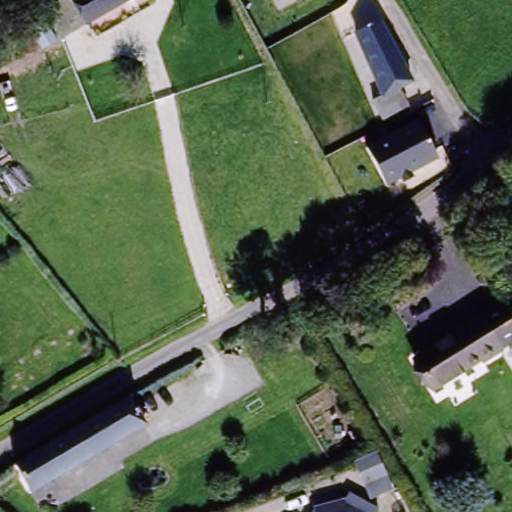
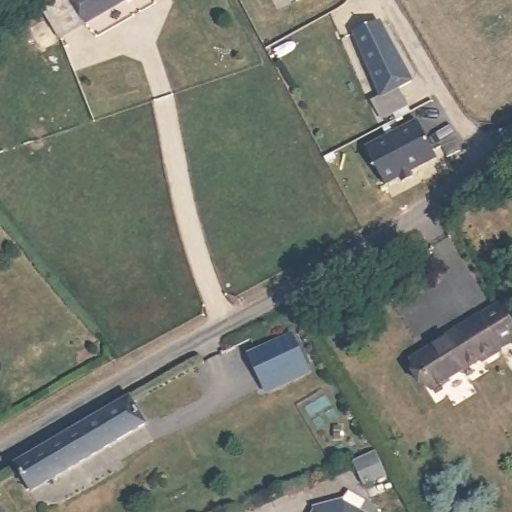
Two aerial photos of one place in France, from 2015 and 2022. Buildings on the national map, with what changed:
unchanged [(45,21),(63,6),(74,0),(132,0),(77,31),(58,42),(45,21)]
unchanged [(296,2),(295,0),(301,0),(296,2)]
unchanged [(360,31),(347,5),(359,0),(361,0),(402,86),(378,97),(352,36),(360,31)]
unchanged [(512,325),(512,346),(496,356),(473,318),(500,304),(512,325)]
unchanged [(407,359),(473,318),(496,356),(478,366),(475,361),(425,390),(407,359)]
new [(267,388),(252,356),(295,336),(310,368),(313,375),(271,395),(267,388)]
unchanged [(127,398),(144,425),(27,493),(12,467),(127,398)]
unchanged [(349,512),(334,512),(348,508),(349,512)]

